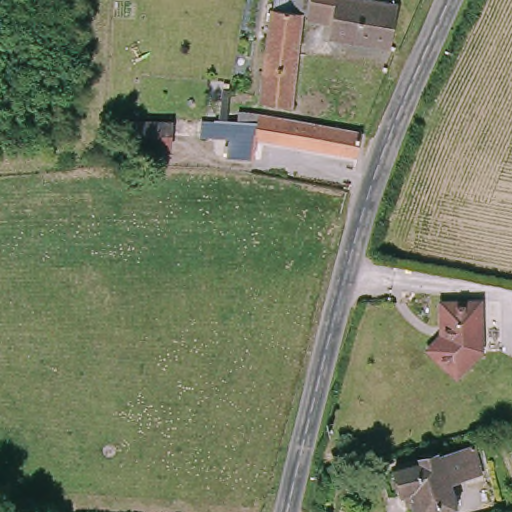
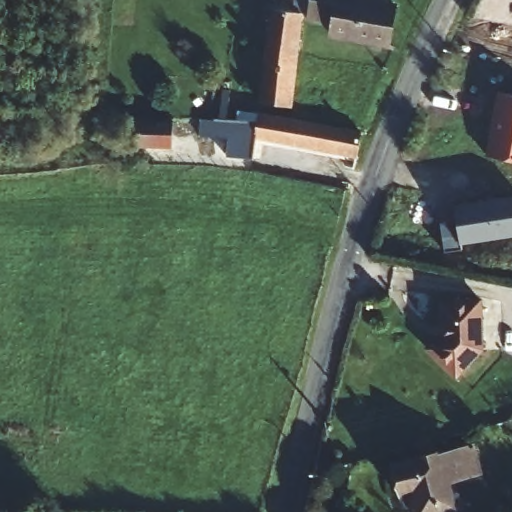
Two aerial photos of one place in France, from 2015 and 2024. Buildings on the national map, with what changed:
unchanged [(379,0),(397,4),(388,43),(331,32),(333,24),(334,20),(323,17),(303,15),(291,104),(260,100),(273,7),(275,7),(276,0),(379,0)]
new [(487,155),(498,92),(512,95),(512,160),(487,155)]
unchanged [(226,121),(226,111),(234,111),(248,111),(259,113),(283,117),(289,118),(305,121),(354,130),(361,131),(363,131),(356,155),(256,137),(253,155),(226,152),(229,136),(200,136),(200,122),(213,122),(213,121),(226,121)]
unchanged [(167,122),(166,150),(136,148),(138,121),(167,122)]
new [(460,245),(461,249),(447,250),(441,220),(456,217),(453,207),(512,195),(512,237),(460,245)]
unchanged [(451,296),(491,299),(489,349),(463,377),(434,348),(450,332),(451,296)]
unchanged [(396,477),(394,471),(396,467),(418,461),(423,455),(431,453),(442,457),(472,450),(479,476),(447,484),(453,511),(447,512),(413,512),(411,503),(408,504),(405,493),(401,494),(399,487),(397,487),(394,477),(396,477)]

